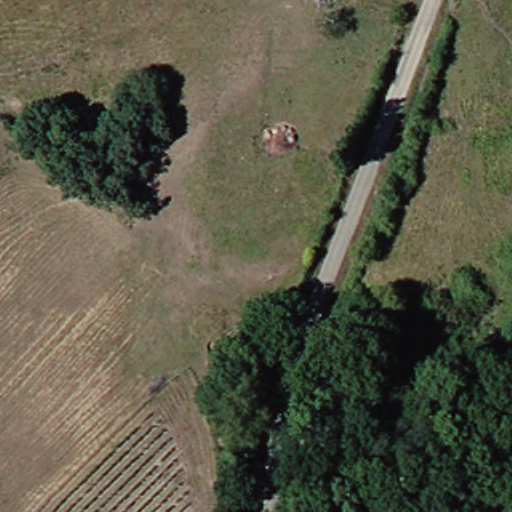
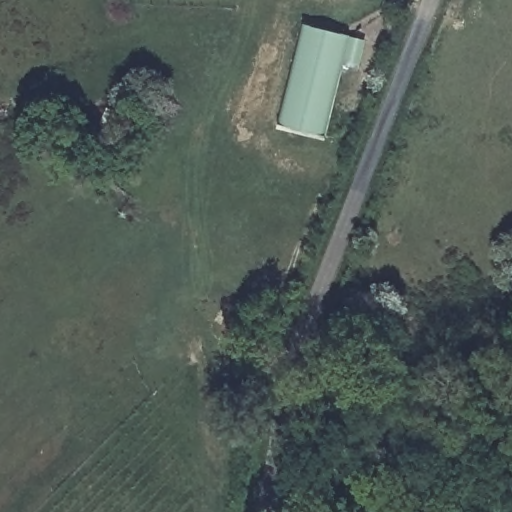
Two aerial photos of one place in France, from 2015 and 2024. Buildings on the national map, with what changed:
new [(364,40),(359,64),(346,61),(326,135),(281,124),(305,24),(364,40)]

